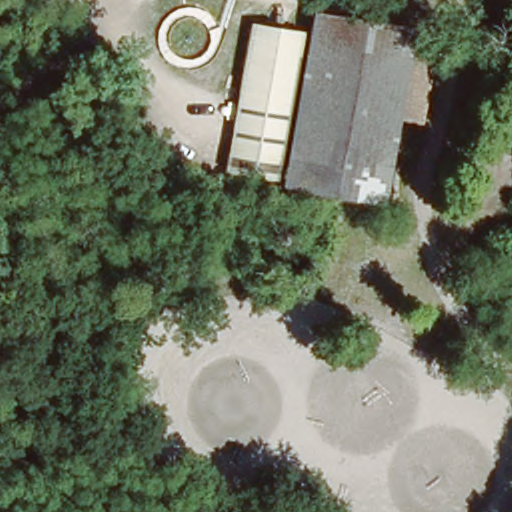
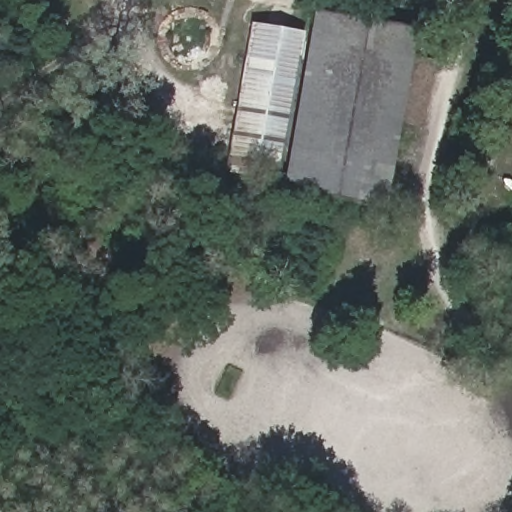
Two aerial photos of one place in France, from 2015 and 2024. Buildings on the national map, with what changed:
unchanged [(377,205),(277,185),(311,9),(412,29),(406,59),(395,119),(377,205)]
unchanged [(249,21),(301,30),(272,173),(221,164),(249,21)]
unchanged [(425,63),(429,64),(432,65),(420,122),(420,124),(395,119),(406,59),(425,63)]

